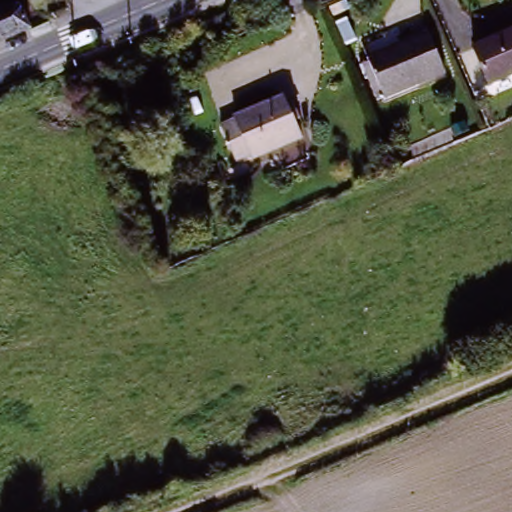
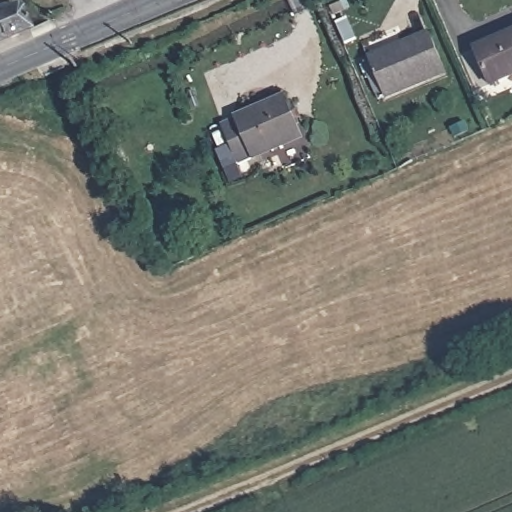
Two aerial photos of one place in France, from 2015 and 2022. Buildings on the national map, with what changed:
unchanged [(16,5),(22,8),(30,28),(0,41),(0,9),(16,5)]
unchanged [(492,82),(476,46),(512,31),(512,74),(492,82)]
unchanged [(369,56),(403,42),(404,44),(431,33),(447,70),(385,95),(369,56)]
unchanged [(221,124),(286,97),(302,135),(237,163),(221,124)]

